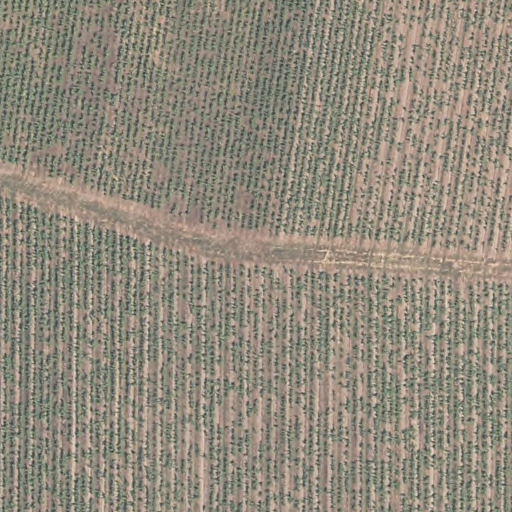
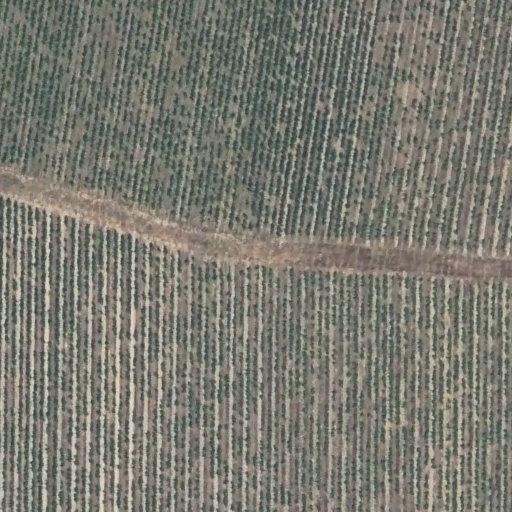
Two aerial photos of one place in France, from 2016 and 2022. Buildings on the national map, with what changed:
[]

